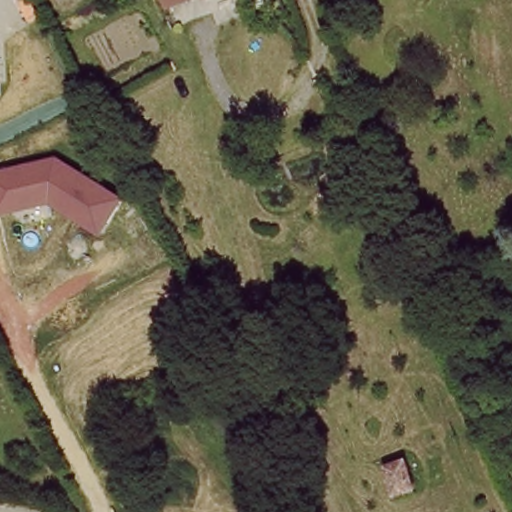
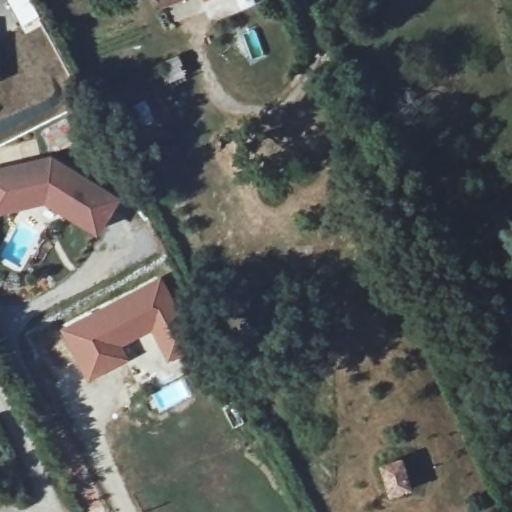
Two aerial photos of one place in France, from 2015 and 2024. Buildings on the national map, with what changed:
new [(157,0),(185,0),(161,11),(157,0)]
unchanged [(117,199),(96,235),(44,202),(40,185),(21,187),(22,195),(16,205),(0,208),(0,172),(52,160),(117,199)]
new [(161,277),(202,343),(168,363),(150,332),(122,347),(129,361),(88,382),(60,331),(161,277)]
unchanged [(407,454),(416,485),(389,492),(380,463),(407,454)]

